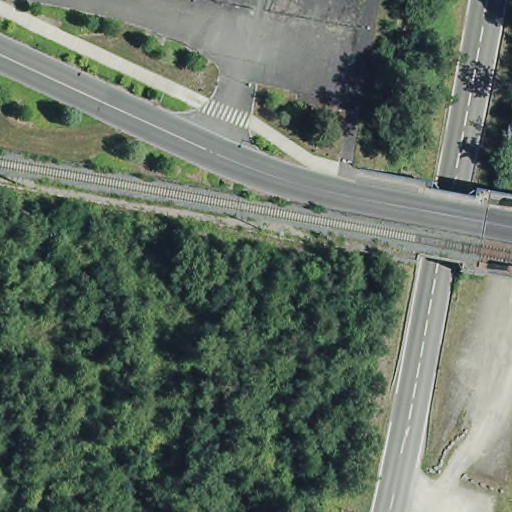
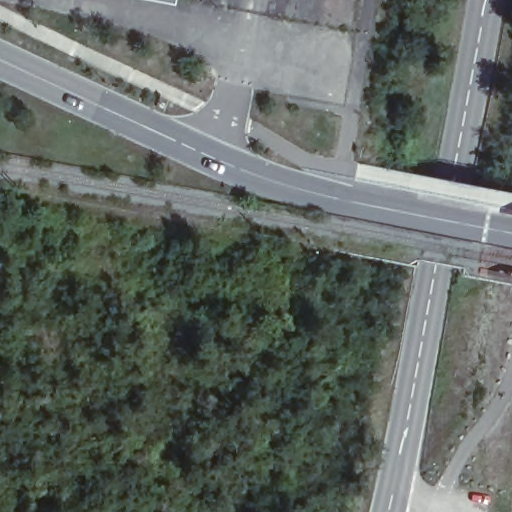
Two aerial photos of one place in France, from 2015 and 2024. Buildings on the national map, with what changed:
unchanged [(150,0),(150,2),(138,0),(170,0),(170,4),(150,0)]

